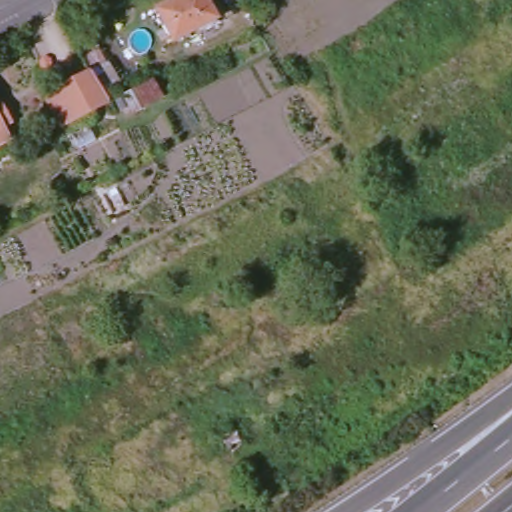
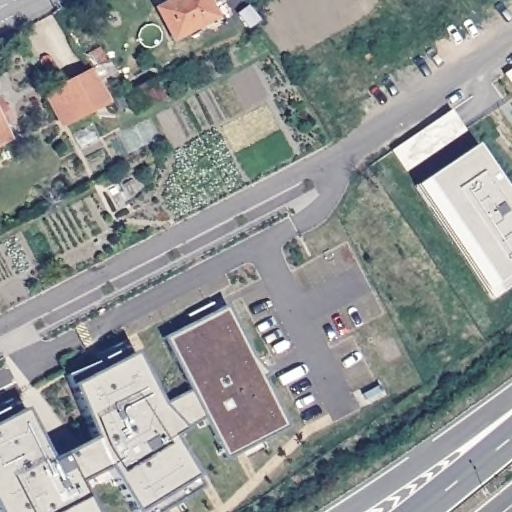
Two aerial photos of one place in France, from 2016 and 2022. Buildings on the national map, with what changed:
unchanged [(211,0),(219,16),(173,40),(157,8),(172,0),(211,0)]
new [(512,69),(512,87),(504,74),(512,69)]
unchanged [(86,70),(105,100),(62,122),(60,124),(42,93),(86,70)]
unchanged [(152,77),(164,97),(130,112),(118,91),(152,77)]
unchanged [(0,111),(2,114),(8,127),(0,132),(0,111)]
unchanged [(0,137),(0,134),(1,136),(0,137)]
new [(473,144),(512,200),(512,280),(499,288),(424,178),(473,144)]
new [(499,288),(490,294),(414,184),(424,178),(499,288)]
new [(267,374),(263,377),(287,426),(226,459),(204,417),(182,431),(171,439),(195,477),(200,488),(160,512),(136,512),(108,469),(80,483),(93,512),(0,512),(0,413),(5,410),(11,419),(25,412),(50,460),(94,439),(71,387),(65,377),(114,354),(119,363),(133,355),(160,406),(191,391),(165,338),(227,307),(253,359),(267,374)]

